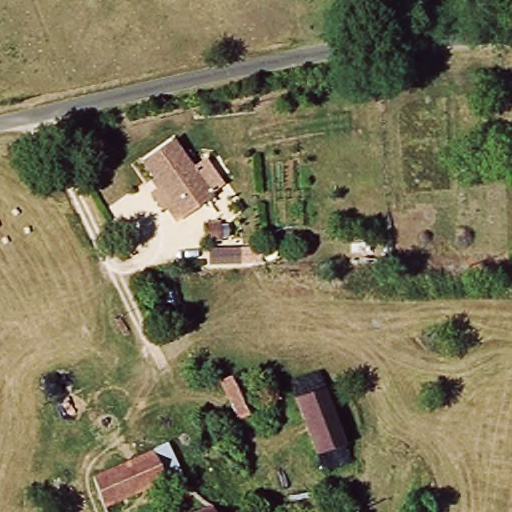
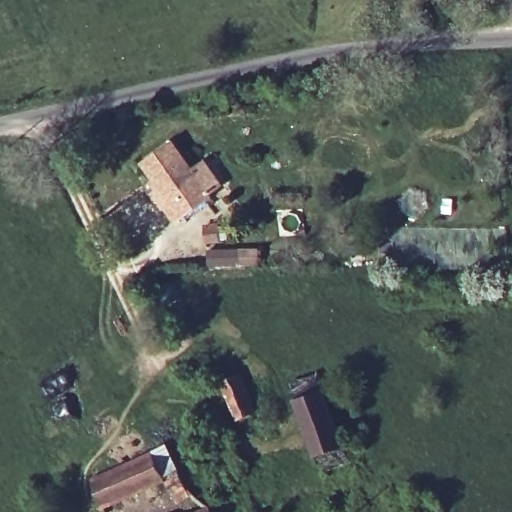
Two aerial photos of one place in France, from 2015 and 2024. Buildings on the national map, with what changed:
unchanged [(417,4),(419,20),(399,21),(397,6),(417,4)]
unchanged [(147,159),(175,139),(215,195),(182,219),(171,205),(177,202),(147,159)]
unchanged [(202,247),(200,228),(215,225),(217,245),(202,247)]
unchanged [(234,250),(236,265),(206,270),(204,254),(234,250)]
unchanged [(262,413),(242,421),(228,385),(247,377),(262,413)]
unchanged [(322,396),(340,452),(314,460),(296,404),(322,396)]
unchanged [(172,512),(160,490),(109,512),(98,512),(89,487),(150,459),(165,451),(176,479),(193,499),(176,512),(172,512)]
unchanged [(205,512),(203,512),(205,511),(205,512)]

